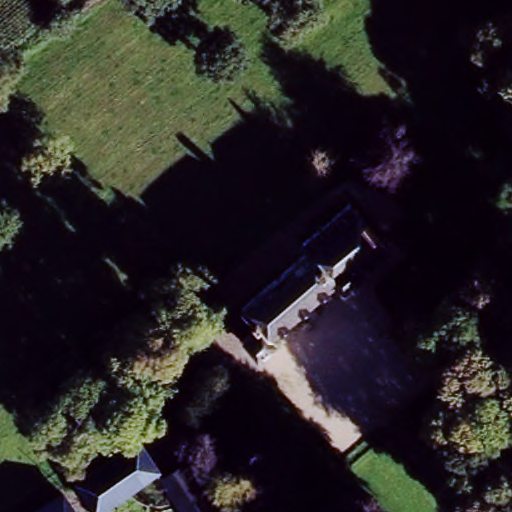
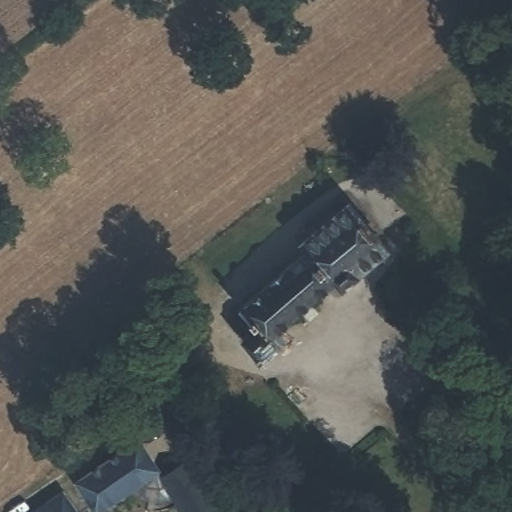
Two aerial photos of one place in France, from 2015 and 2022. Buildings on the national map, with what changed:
unchanged [(353,267),(359,275),(338,291),(331,283),(270,333),(275,340),(256,357),(241,337),(253,325),(238,306),(306,252),(299,245),(346,206),(379,245),(353,267)]
unchanged [(163,495),(154,496),(142,493),(135,485),(96,512),(93,512),(76,487),(117,458),(136,445),(154,470),(165,483),(181,470),(213,512),(185,512),(170,491),(163,495)]
unchanged [(70,512),(33,512),(56,495),(70,512)]
unchanged [(359,512),(349,512),(355,507),(359,512)]

